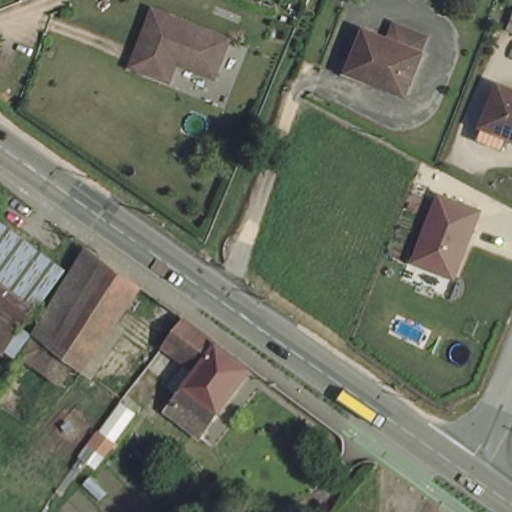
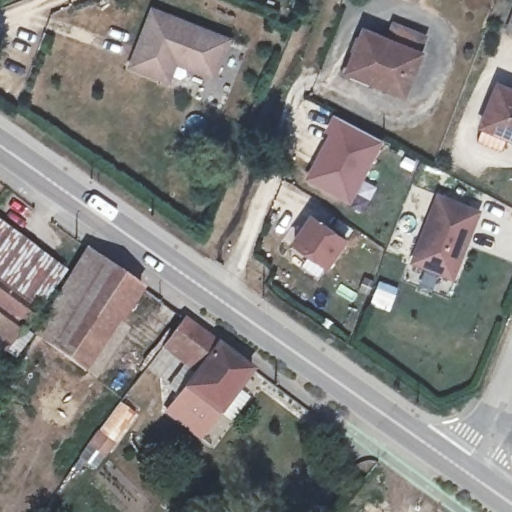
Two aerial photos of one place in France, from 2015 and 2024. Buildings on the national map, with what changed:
unchanged [(234,32),(218,69),(180,53),(173,71),(136,56),(160,1),(234,32)]
unchanged [(503,1),(512,4),(512,27),(497,22),(503,1)]
unchanged [(345,79),(366,29),(374,32),(381,17),(425,35),(405,102),(345,79)]
unchanged [(496,85),(512,91),(512,136),(482,124),(496,85)]
new [(333,114),(386,141),(365,179),(377,186),(369,201),(357,194),(350,205),(303,179),(333,114)]
unchanged [(481,210),(455,278),(411,262),(436,192),(481,210)]
new [(310,216),(343,239),(325,265),(292,242),(310,216)]
unchanged [(0,359),(0,221),(67,270),(4,361),(0,359)]
unchanged [(40,342),(92,251),(143,290),(85,375),(75,367),(40,342)]
unchanged [(205,437),(171,411),(203,367),(166,339),(184,315),(255,367),(205,437)]
unchanged [(75,367),(59,387),(24,362),(25,362),(37,340),(40,342),(75,367)]
new [(135,412),(97,469),(87,462),(80,473),(72,467),(118,401),(135,412)]

